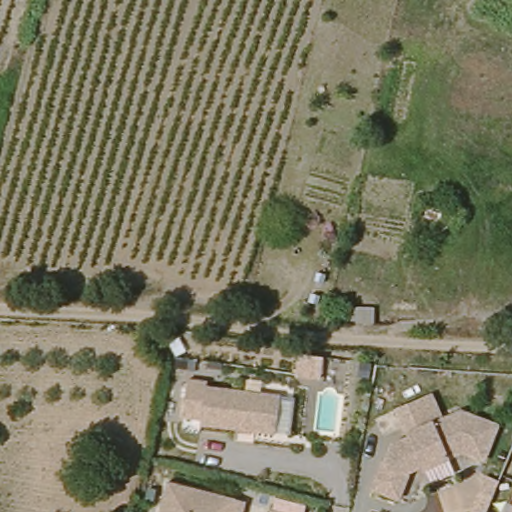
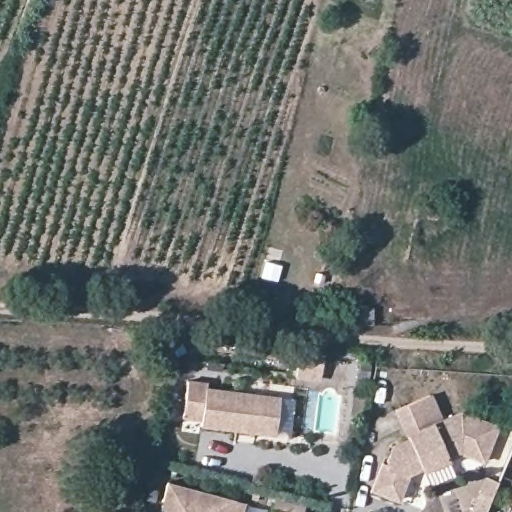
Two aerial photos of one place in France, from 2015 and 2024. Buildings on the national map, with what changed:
unchanged [(323,330),(323,314),(340,314),(342,307),(370,308),(372,323),(394,323),(395,335),(323,330)]
unchanged [(281,390),(277,428),(205,420),(205,415),(185,413),(190,376),(210,378),(210,383),(281,390)]
unchanged [(382,433),(404,428),(397,400),(435,390),(442,418),(462,413),(496,432),(476,466),(456,454),(406,467),(395,486),(367,469),(382,433)]
unchanged [(247,499),(244,512),(162,512),(171,479),(247,499)]
unchanged [(490,486),(502,490),(494,512),(489,512),(481,509),(490,486)]
unchanged [(509,502),(512,495),(512,503),(509,502)]
unchanged [(511,512),(512,511),(512,512),(511,512)]

